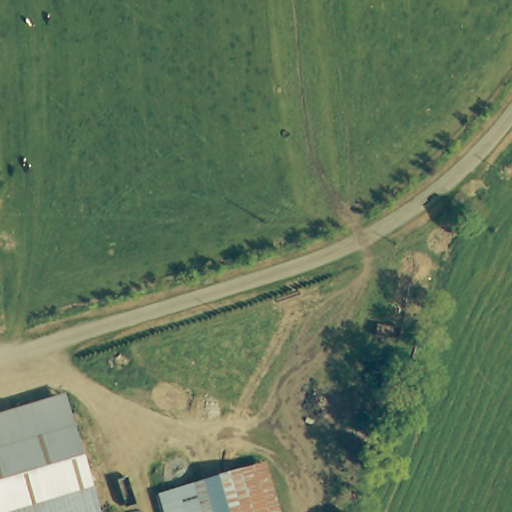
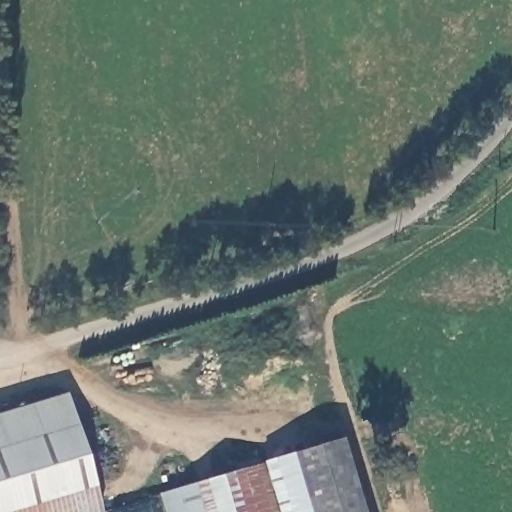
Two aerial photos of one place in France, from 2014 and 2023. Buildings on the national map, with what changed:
unchanged [(109,494),(46,512),(0,512),(0,430),(5,428),(85,405),(109,494)]
new [(338,441),(359,512),(280,512),(265,463),(338,441)]
unchanged [(265,463),(280,512),(163,512),(157,494),(265,463)]

